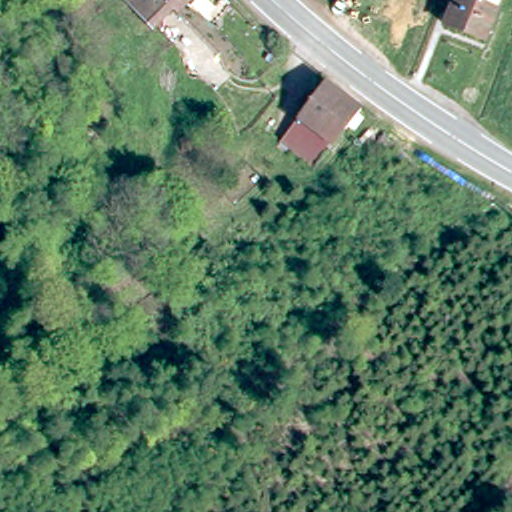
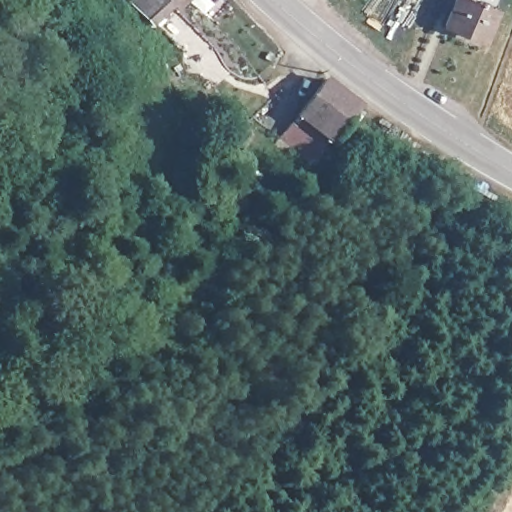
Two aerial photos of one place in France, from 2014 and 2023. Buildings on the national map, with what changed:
unchanged [(136,0),(186,0),(178,6),(175,2),(153,20),(136,0)]
unchanged [(491,40),(451,21),(461,0),(469,0),(502,16),(491,40)]
unchanged [(302,125),(333,91),(367,120),(333,155),(302,125)]

